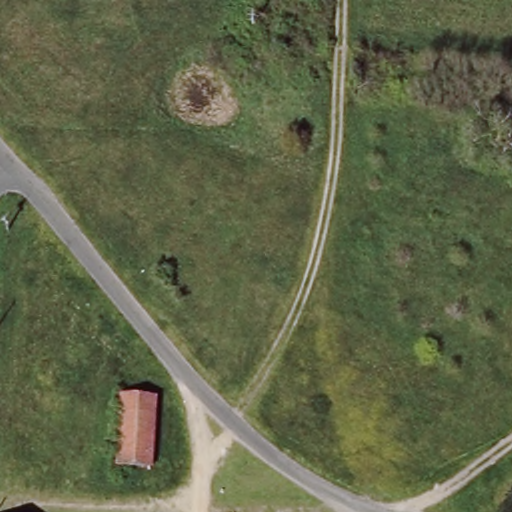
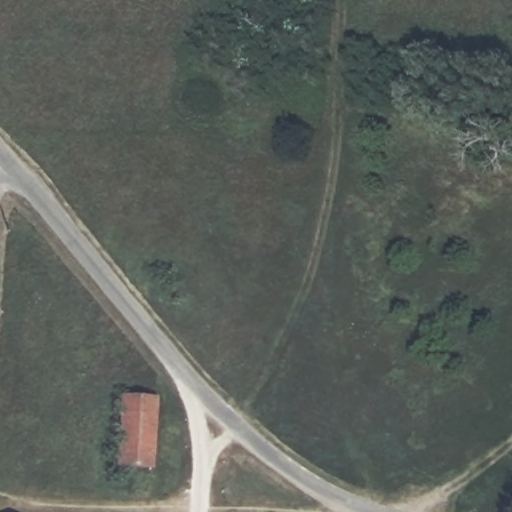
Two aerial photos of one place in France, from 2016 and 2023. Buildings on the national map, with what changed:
unchanged [(165,396),(157,466),(119,465),(125,393),(165,396)]

